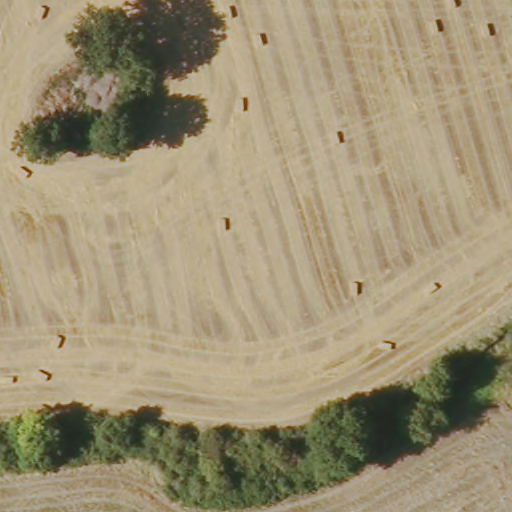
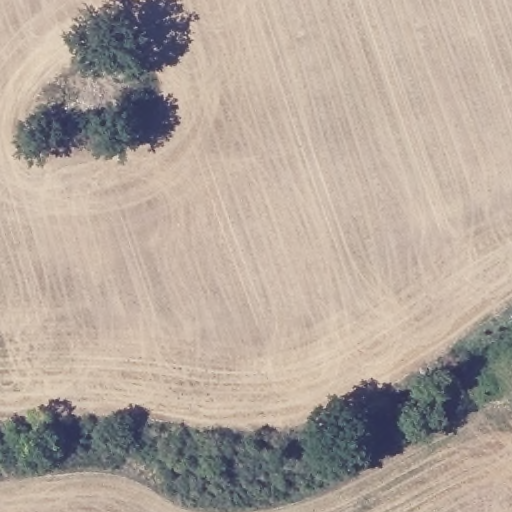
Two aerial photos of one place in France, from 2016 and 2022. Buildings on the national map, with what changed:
[]

